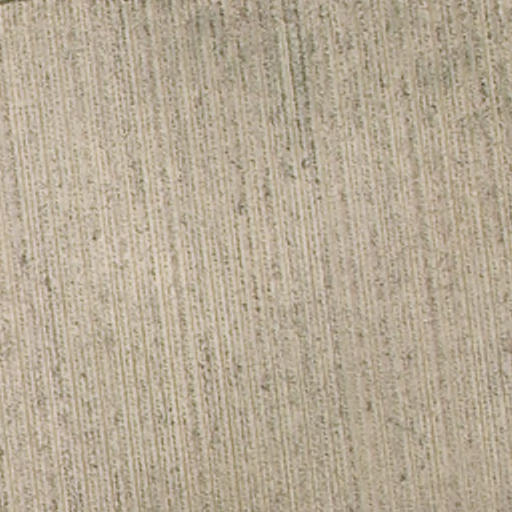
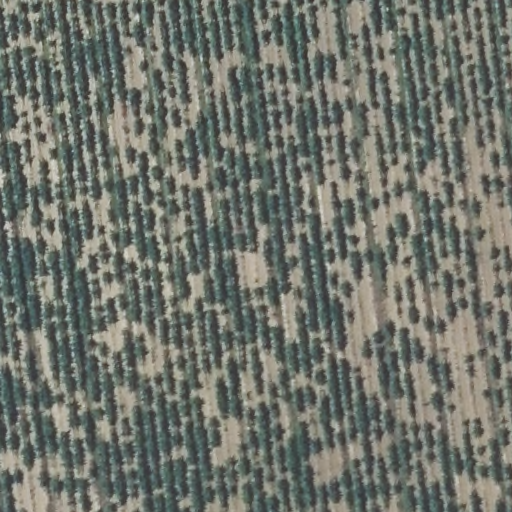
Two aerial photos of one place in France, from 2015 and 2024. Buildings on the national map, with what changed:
[]

